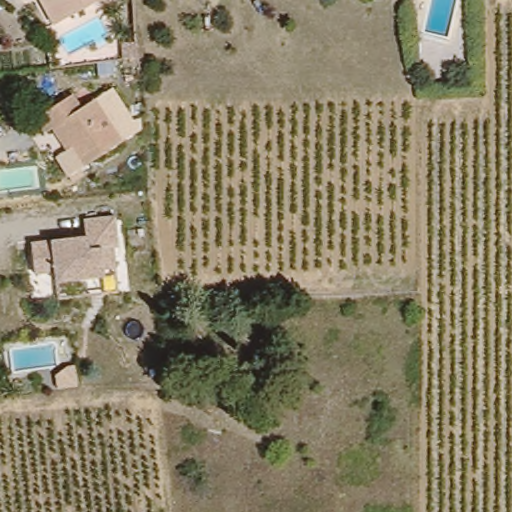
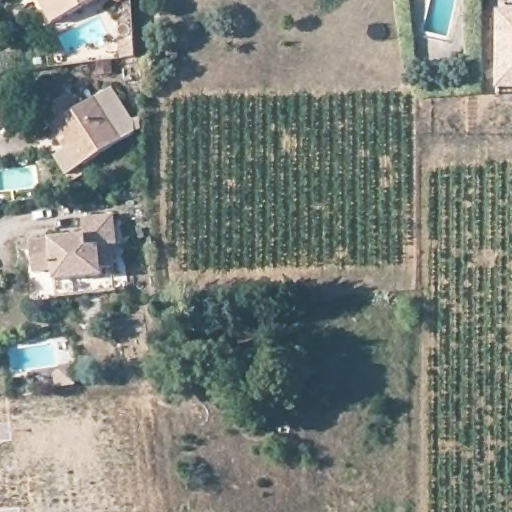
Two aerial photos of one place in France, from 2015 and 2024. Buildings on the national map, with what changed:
unchanged [(108,1),(44,30),(30,0),(107,0),(108,1)]
new [(512,10),(512,89),(497,89),(497,10),(512,10)]
unchanged [(139,47),(124,49),(122,16),(137,15),(139,47)]
unchanged [(57,130),(51,134),(41,121),(77,98),(86,112),(102,102),(125,140),(90,163),(79,146),(71,152),(57,130)]
unchanged [(76,239),(87,238),(85,221),(116,218),(119,249),(114,249),(116,270),(104,271),(105,278),(57,282),(56,272),(35,274),(32,244),(63,241),(76,239)]
unchanged [(71,360),(80,359),(82,379),(62,381),(61,368),(71,360)]

